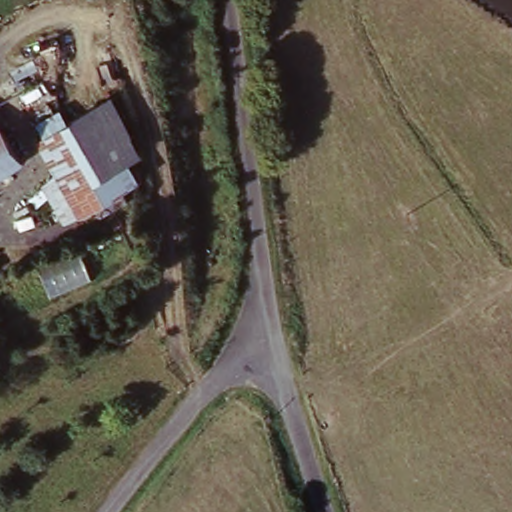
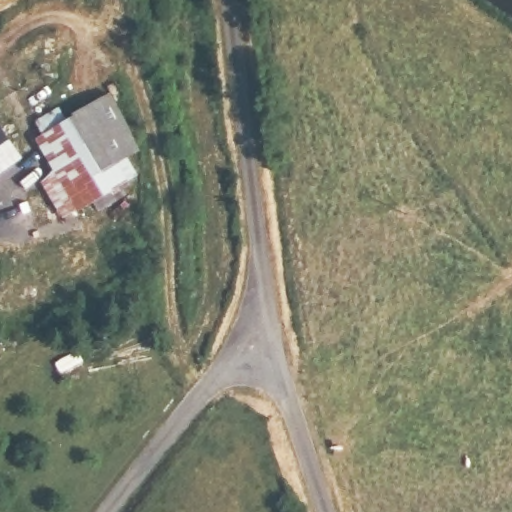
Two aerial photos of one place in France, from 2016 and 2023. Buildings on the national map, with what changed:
unchanged [(139,157),(124,177),(129,186),(101,204),(94,196),(60,220),(29,192),(54,171),(37,136),(109,95),(139,157)]
unchanged [(0,139),(0,134),(3,137),(0,139)]
unchanged [(3,137),(11,134),(34,166),(0,189),(0,139),(3,137)]
demolished [(80,248),(89,277),(44,295),(35,268),(80,248)]

